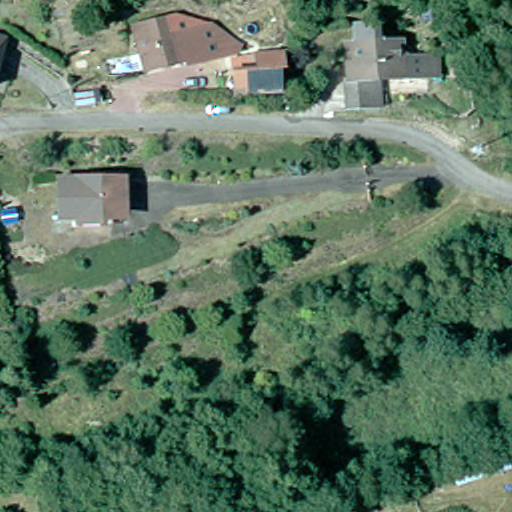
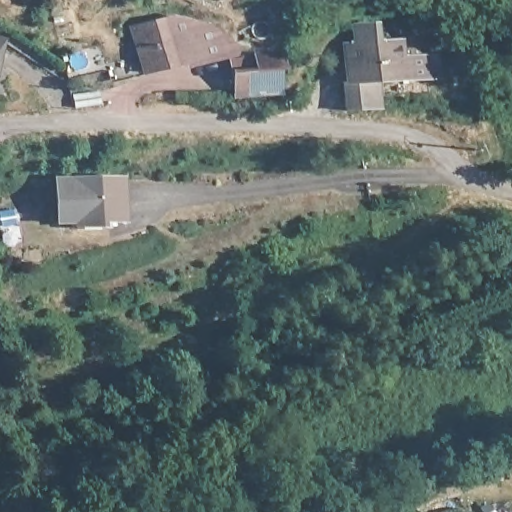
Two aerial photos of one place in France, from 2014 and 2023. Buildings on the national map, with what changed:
unchanged [(118,55),(130,51),(124,24),(165,14),(169,31),(202,24),(231,45),(227,51),(209,55),(177,62),(177,58),(135,68),(135,66),(122,70),(118,55)]
unchanged [(337,106),(335,78),(338,78),(337,40),(392,38),(392,55),(420,53),(430,52),(431,73),(420,74),(393,75),(368,76),(370,105),(337,106)]
unchanged [(253,70),(252,58),(275,55),(278,82),(233,87),(232,73),(253,70)]
unchanged [(102,105),(76,109),(72,96),(100,91),(102,105)]
unchanged [(127,212),(108,212),(108,217),(63,217),(65,175),(127,175),(127,212)]

